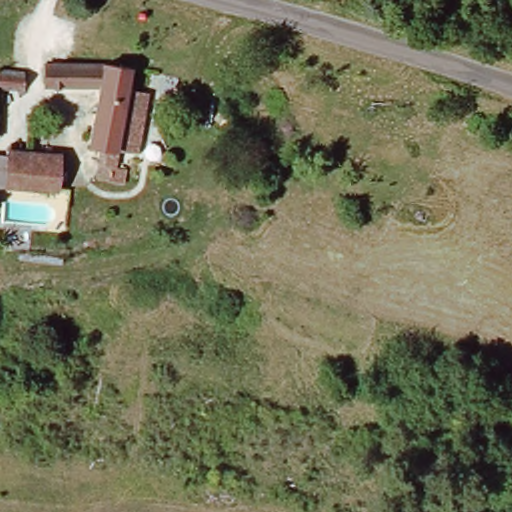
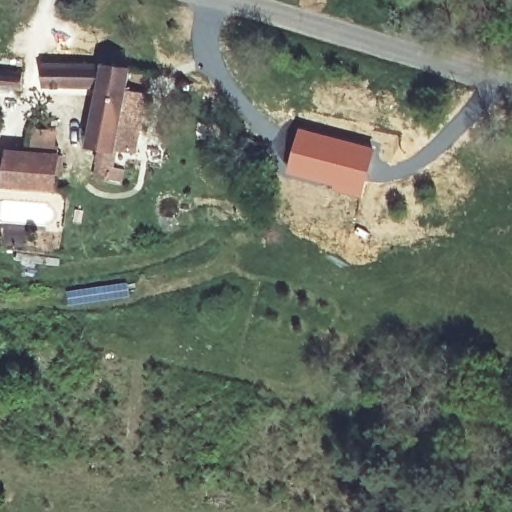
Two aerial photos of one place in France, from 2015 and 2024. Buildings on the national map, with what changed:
unchanged [(123,180),(110,181),(111,166),(100,165),(103,143),(91,141),(98,88),(44,85),(45,64),(72,62),(129,65),(128,97),(139,98),(148,100),(138,150),(129,148),(116,145),(115,166),(126,166),(123,180)]
unchanged [(0,84),(2,72),(28,71),(28,90),(0,90),(0,84)]
new [(298,126),(376,148),(361,198),(286,173),(298,126)]
unchanged [(56,190),(6,185),(9,149),(60,154),(56,190)]

